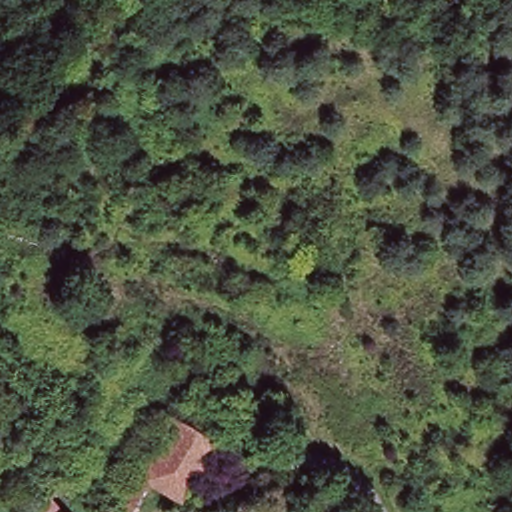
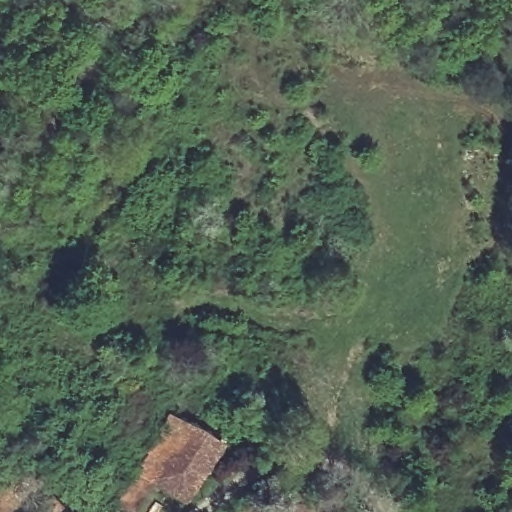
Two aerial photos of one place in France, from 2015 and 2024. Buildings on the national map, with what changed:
unchanged [(155,481),(133,512),(116,500),(170,414),(226,443),(187,501),(155,481)]
unchanged [(66,512),(40,512),(56,500),(66,512)]

